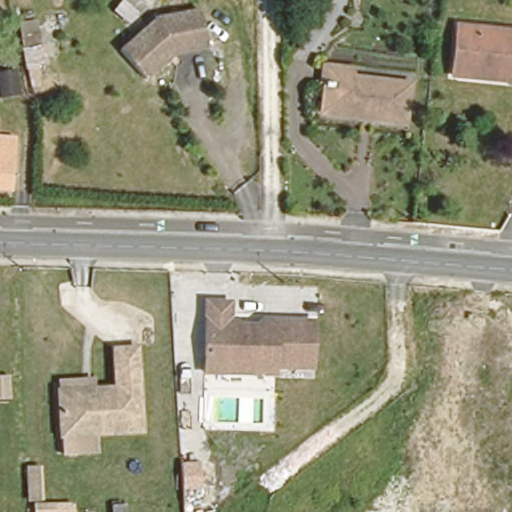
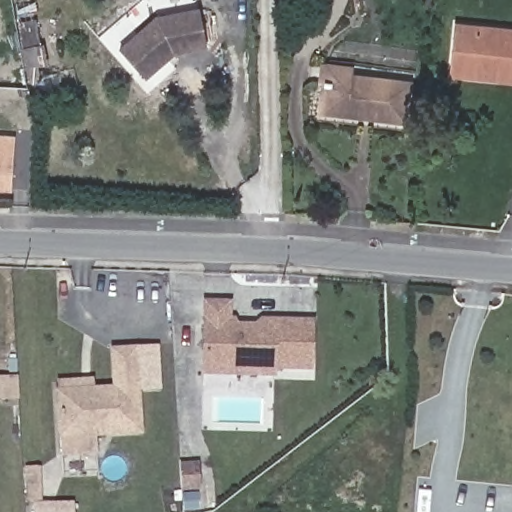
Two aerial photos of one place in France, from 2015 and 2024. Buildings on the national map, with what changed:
unchanged [(206,50),(173,56),(144,82),(121,56),(158,24),(199,16),(206,50)]
unchanged [(443,81),(447,30),(512,37),(512,88),(479,85),(443,81)]
unchanged [(25,69),(19,35),(37,31),(45,65),(25,69)]
unchanged [(318,116),(320,87),(315,87),(317,72),(344,76),(342,87),(395,91),(394,129),(361,126),(317,122),(318,116)]
unchanged [(5,190),(0,190),(0,141),(4,142),(5,190)]
unchanged [(230,298),(232,320),(255,321),(255,317),(315,318),(313,368),(273,367),(273,376),(202,373),(202,298),(230,298)]
unchanged [(93,376),(94,384),(111,383),(109,347),(137,344),(143,433),(58,436),(55,378),(93,376)]
unchanged [(7,373),(9,400),(0,400),(0,374),(7,373)]
unchanged [(39,465),(42,502),(25,502),(22,466),(39,465)]

